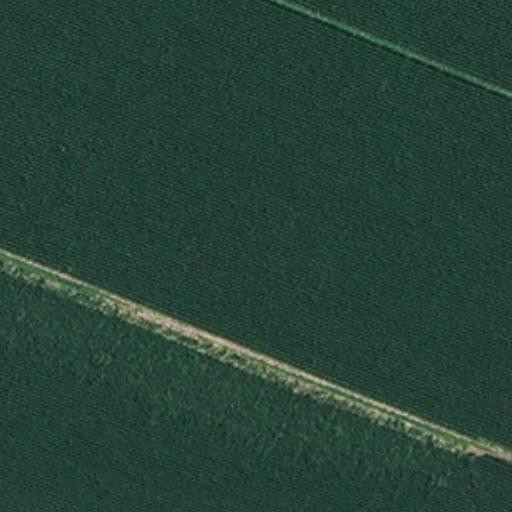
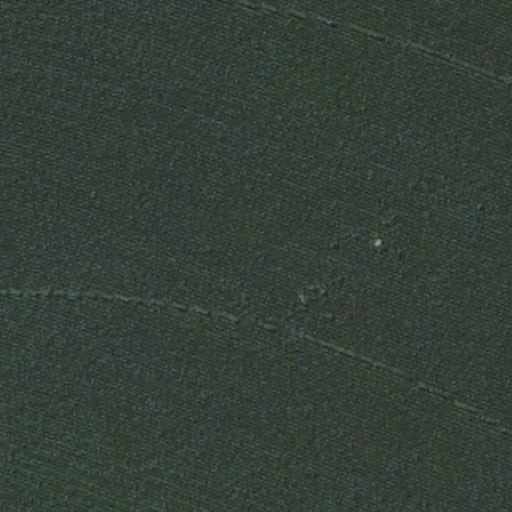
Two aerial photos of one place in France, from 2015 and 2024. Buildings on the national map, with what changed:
[]

